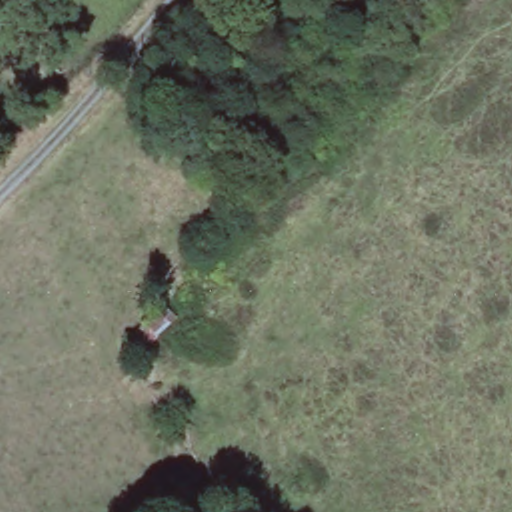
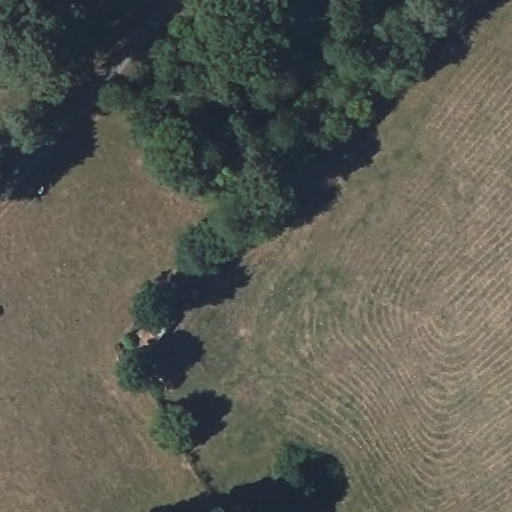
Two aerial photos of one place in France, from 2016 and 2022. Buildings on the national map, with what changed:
unchanged [(128,347),(163,307),(178,320),(143,362),(128,347)]

